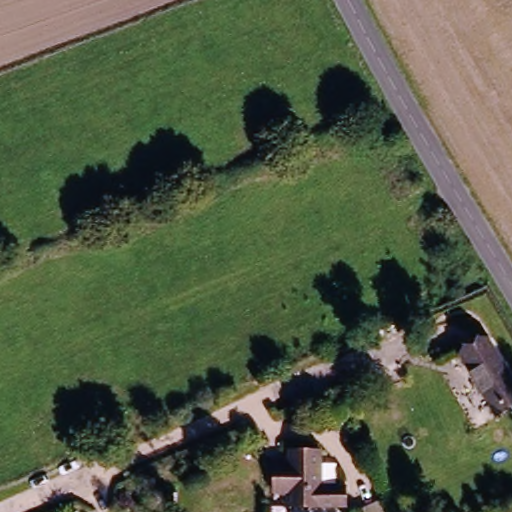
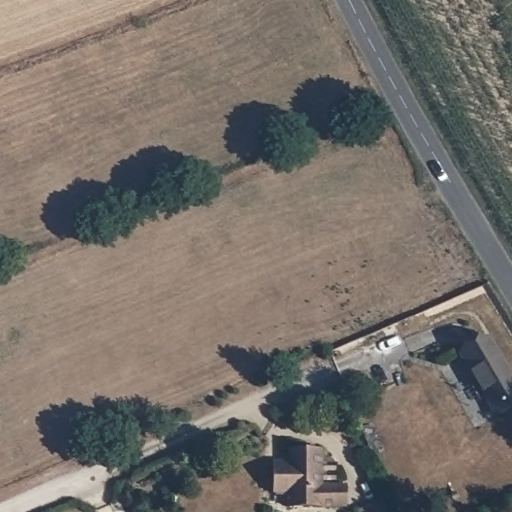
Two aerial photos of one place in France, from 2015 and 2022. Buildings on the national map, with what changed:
unchanged [(512,381),(512,406),(494,417),(463,362),(493,346),(512,381)]
unchanged [(324,447),(324,482),(351,483),(351,511),(288,512),(288,496),(269,496),(271,461),(288,459),(289,445),(324,447)]

